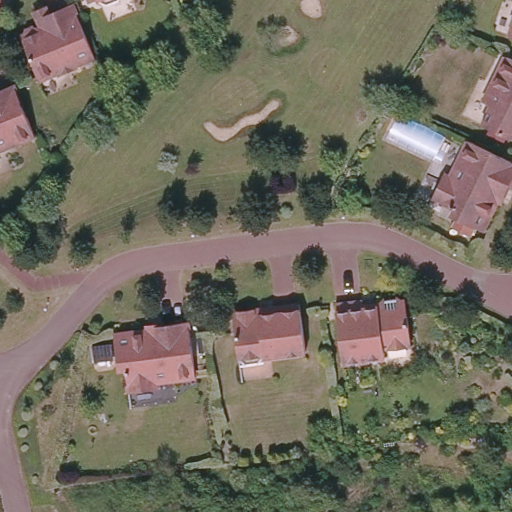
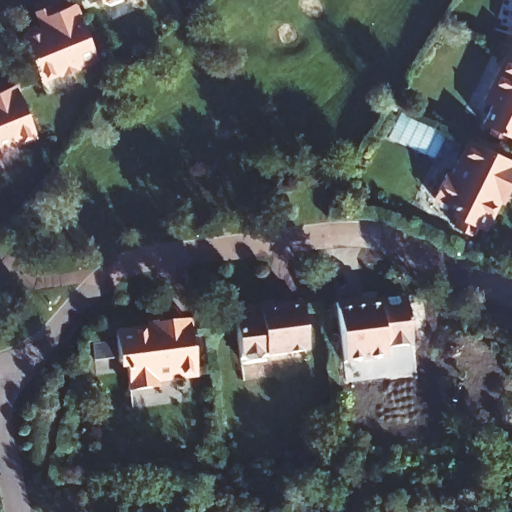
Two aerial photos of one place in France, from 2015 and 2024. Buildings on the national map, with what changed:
unchanged [(106,5),(97,2),(97,0),(119,0),(118,1),(106,5)]
unchanged [(81,11),(85,19),(96,48),(100,58),(82,65),(83,67),(62,75),(62,74),(44,81),(25,36),(30,35),(30,31),(37,28),(41,30),(45,29),(42,24),(36,12),(51,6),(55,15),(78,5),(81,11)]
unchanged [(507,30),(512,16),(512,32),(507,30)]
unchanged [(480,123),(490,104),(482,101),(504,54),(512,58),(512,139),(480,123)]
unchanged [(455,218),(453,208),(432,198),(445,172),(450,175),(466,139),(490,150),(511,160),(512,161),(512,174),(507,185),(510,186),(502,203),(496,201),(482,231),(455,218)]
unchanged [(288,184),(290,197),(275,199),(275,186),(288,184)]
unchanged [(383,299),(397,297),(400,301),(405,300),(411,345),(382,349),(384,358),(343,363),(333,303),(362,300),(363,304),(377,302),(377,303),(381,303),(383,299)]
unchanged [(305,352),(260,358),(257,364),(245,366),(238,362),(232,316),(235,312),(255,309),(260,312),(260,308),(271,307),(300,303),(305,352)]
unchanged [(156,383),(156,387),(127,392),(124,369),(117,364),(113,333),(146,329),(145,324),(162,321),(163,324),(187,321),(187,327),(195,378),(156,383)]

